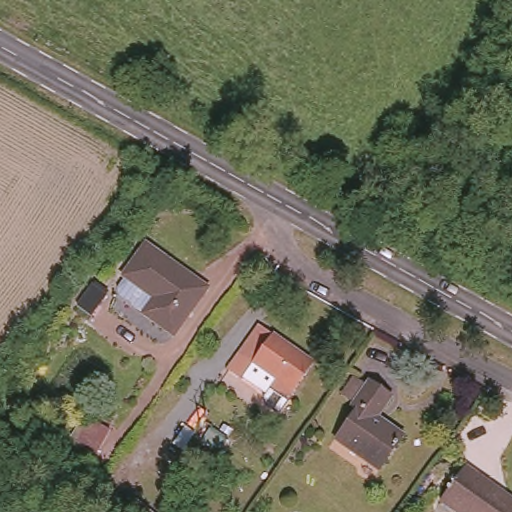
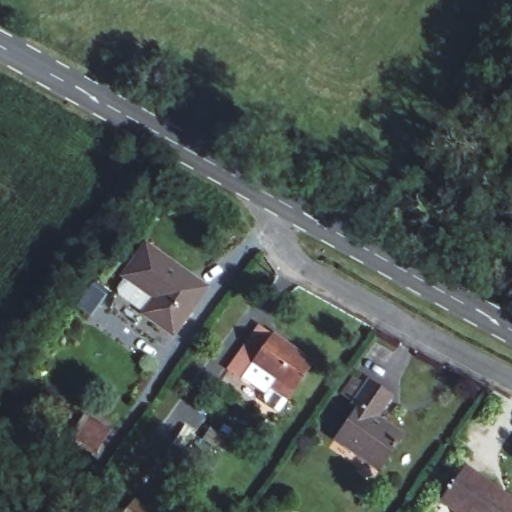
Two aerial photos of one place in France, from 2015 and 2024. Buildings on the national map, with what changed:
unchanged [(143,310),(157,295),(129,275),(152,244),(213,287),(177,334),(143,310)]
unchanged [(225,370),(255,322),(315,360),(293,398),(270,385),(264,394),(225,370)]
unchanged [(357,410),(353,407),(342,400),(355,380),(366,387),(369,382),(390,395),(378,415),(407,433),(385,471),(336,440),(357,410)]
unchanged [(467,470),(512,499),(512,512),(453,512),(444,506),(467,470)]
unchanged [(131,512),(121,512),(125,507),(131,512)]

